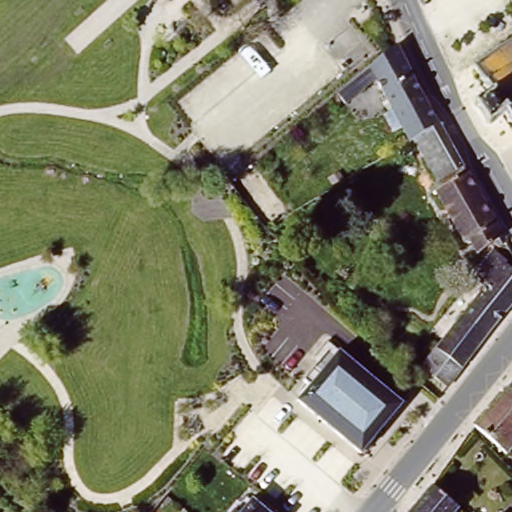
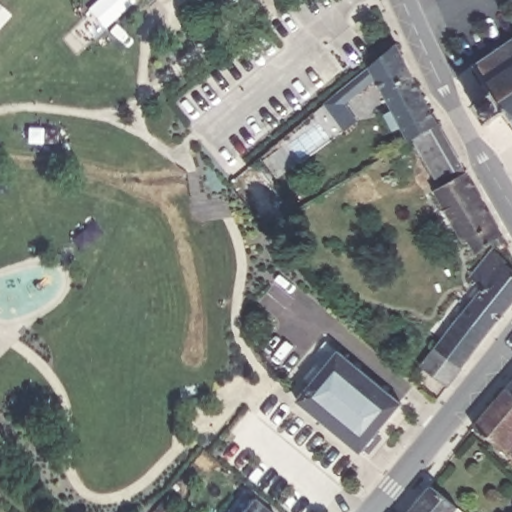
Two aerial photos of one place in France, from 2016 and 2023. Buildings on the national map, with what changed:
unchanged [(470,70),(512,42),(512,130),(500,113),(491,119),(485,124),(480,127),(470,110),(489,97),(472,72),(470,70)]
unchanged [(388,52),(396,46),(438,130),(415,145),(411,147),(377,89),(363,96),(349,86),(388,52)]
unchanged [(438,130),(503,245),(480,258),(473,246),(466,250),(435,194),(441,190),(415,145),(438,130)]
unchanged [(447,393),(421,372),(482,295),(470,285),(494,255),(509,266),(506,270),(512,275),(512,308),(447,393)]
unchanged [(403,401),(361,452),(297,400),(338,350),(403,401)]
unchanged [(512,383),(512,405),(501,396),(512,383)]
unchanged [(501,396),(512,405),(512,447),(505,456),(473,431),(501,396)]
unchanged [(432,485),(460,508),(457,512),(410,512),(432,485)]
unchanged [(234,506),(239,510),(250,497),(267,512),(229,512),(234,506)]

